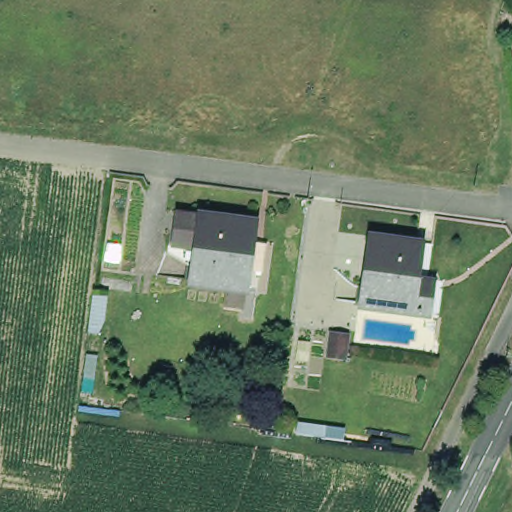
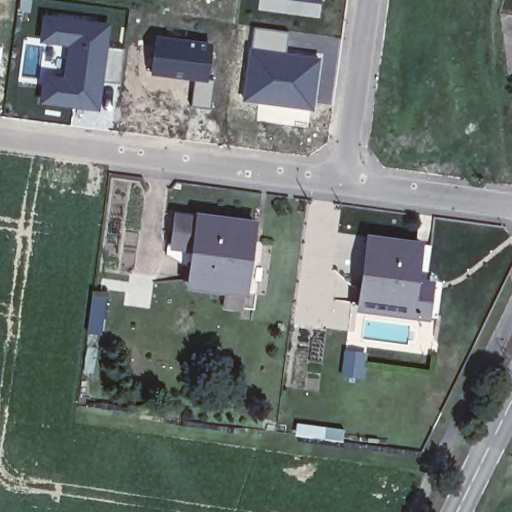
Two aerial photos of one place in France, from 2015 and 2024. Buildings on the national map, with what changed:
new [(322,2),(308,0),(322,0),(322,2)]
new [(40,67),(60,69),(63,46),(38,42),(42,10),(110,20),(108,46),(123,47),(120,82),(104,81),(101,111),(36,104),(40,67)]
new [(254,26),(287,30),(285,50),(322,55),(314,110),(241,100),(249,46),(254,26)]
unchanged [(220,292),(183,287),(188,249),(166,246),(171,214),(192,217),(192,215),(249,223),(246,240),(258,242),(251,296),(239,295),(236,314),(218,312),(220,292)]
unchanged [(423,317),(352,308),(361,237),(414,245),(424,247),(420,279),(428,280),(438,282),(432,318),(423,317)]
unchanged [(345,342),(343,361),(326,359),(328,340),(345,342)]
unchanged [(296,439),(298,427),(322,430),(321,442),(296,439)]

